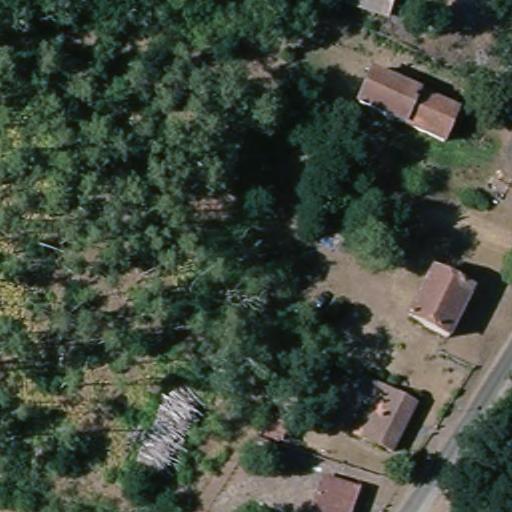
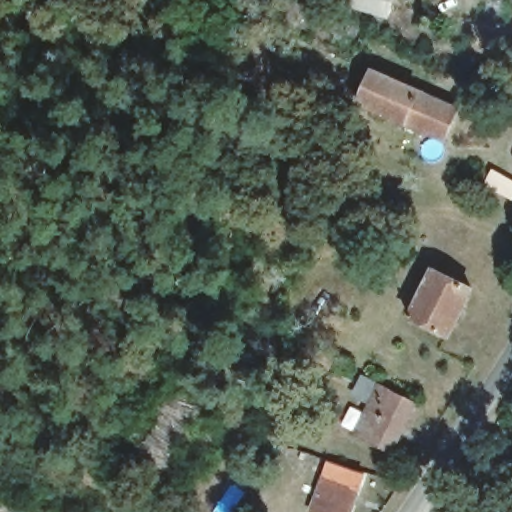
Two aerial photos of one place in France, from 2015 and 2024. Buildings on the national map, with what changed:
unchanged [(366,0),(384,0),(403,8),(393,31),(358,18),(366,0)]
unchanged [(438,137),(353,99),(368,67),(452,105),(438,137)]
unchanged [(271,173),(249,162),(271,118),(293,129),(271,173)]
unchanged [(448,334),(410,314),(433,267),(471,287),(448,334)]
unchanged [(390,451),(361,439),(378,402),(366,397),(372,382),(413,399),(390,451)]
unchanged [(281,426),(260,418),(265,404),(286,413),(281,426)]
unchanged [(357,489),(350,512),(312,512),(309,511),(321,477),(357,489)]

